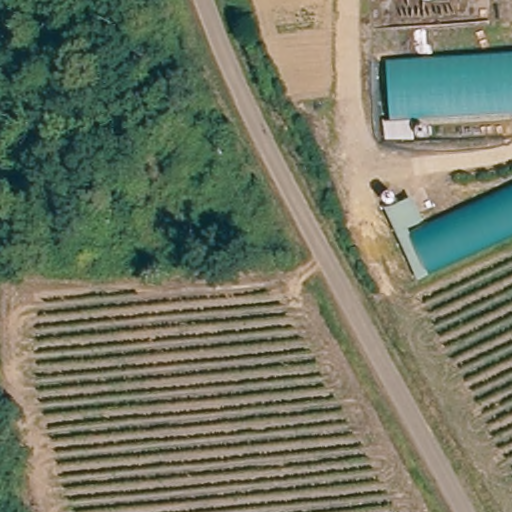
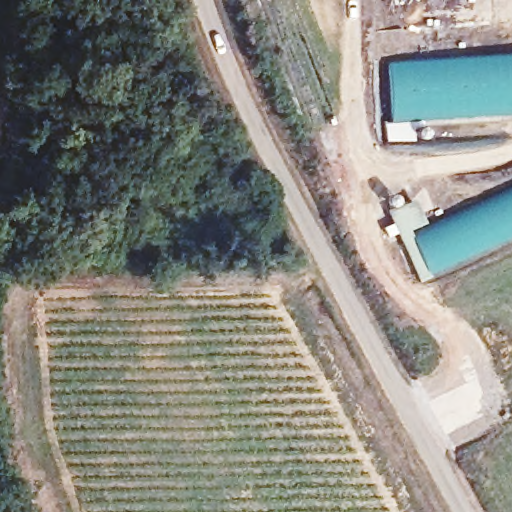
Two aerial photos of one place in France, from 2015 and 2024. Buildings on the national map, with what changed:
unchanged [(512,115),(414,123),(415,140),(387,143),(385,126),(392,126),(387,65),(512,56),(512,115)]
unchanged [(426,228),(512,185),(512,236),(425,281),(390,214),(412,202),(426,228)]

